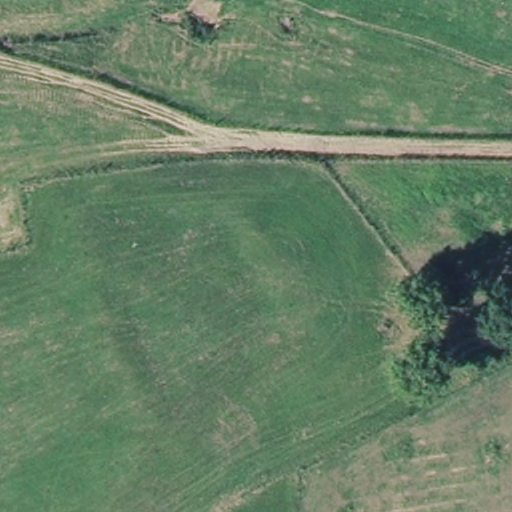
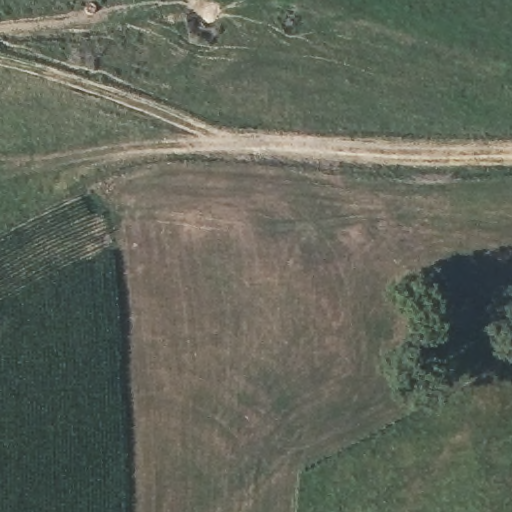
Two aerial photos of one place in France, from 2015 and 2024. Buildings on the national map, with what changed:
[]

